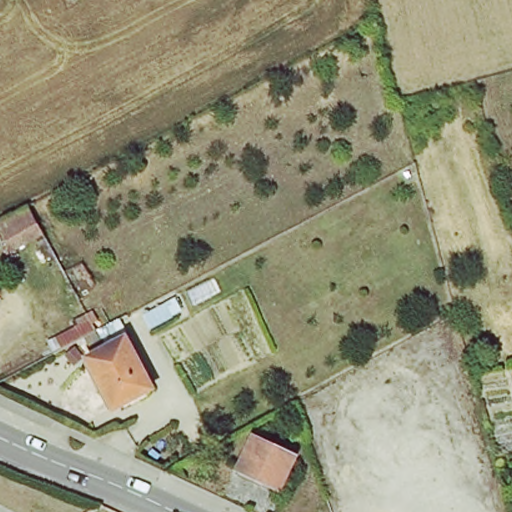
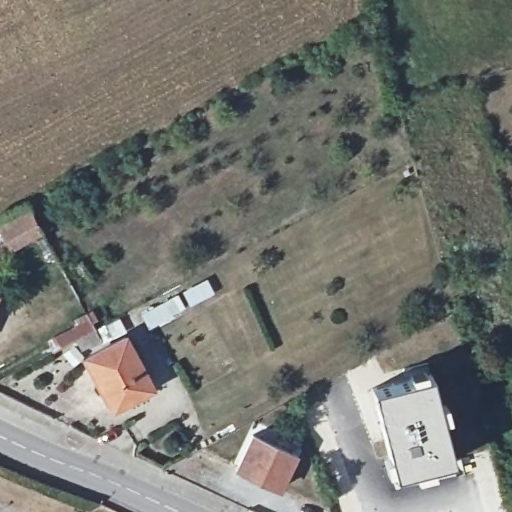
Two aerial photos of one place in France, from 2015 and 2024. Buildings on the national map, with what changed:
unchanged [(42,232),(11,247),(0,230),(0,218),(27,204),(42,232)]
unchanged [(96,330),(52,353),(46,341),(91,318),(97,330),(96,330)]
unchanged [(110,410),(84,358),(123,340),(149,391),(110,410)]
new [(430,372),(441,411),(456,472),(393,490),(368,387),(430,372)]
unchanged [(236,472),(252,437),(294,458),(279,491),(236,472)]

